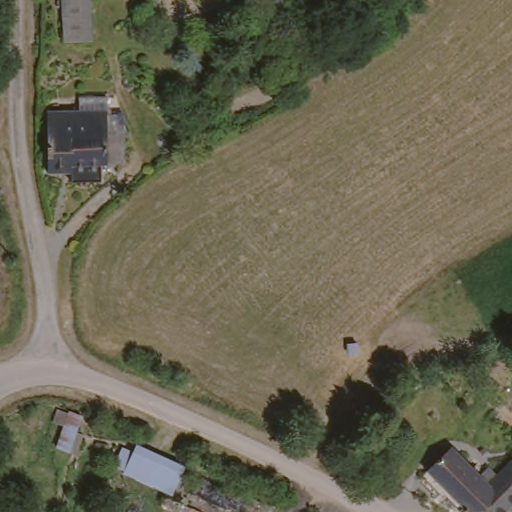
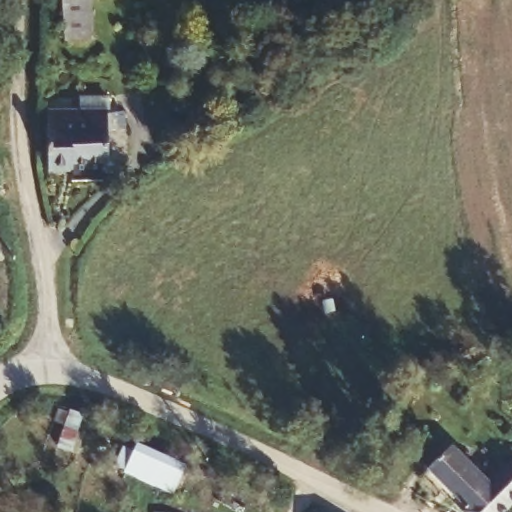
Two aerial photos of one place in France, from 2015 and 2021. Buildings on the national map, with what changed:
unchanged [(62,0),(90,0),(93,42),(64,44),(62,0)]
unchanged [(51,129),(51,109),(84,109),(84,95),(112,96),(111,127),(129,128),(129,160),(78,160),(70,160),(70,167),(50,167),(51,129)]
unchanged [(121,461),(134,440),(183,466),(170,487),(121,461)]
unchanged [(452,496),(455,493),(430,470),(452,449),(477,478),(488,467),(495,474),(492,476),(465,503),(462,506),(452,496)]
unchanged [(495,474),(512,457),(512,499),(492,476),(495,474)]
unchanged [(492,476),(512,499),(512,505),(504,512),(473,512),(465,503),(492,476)]

